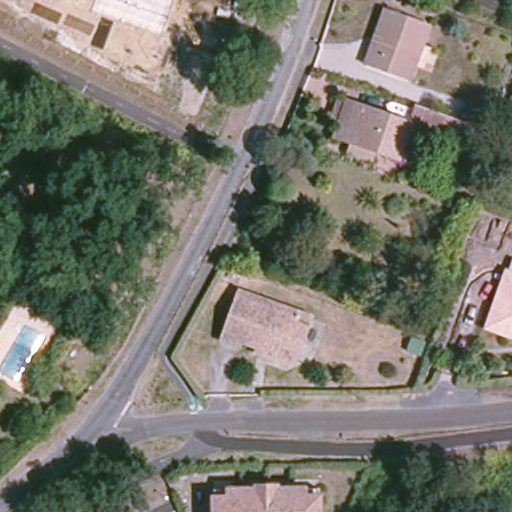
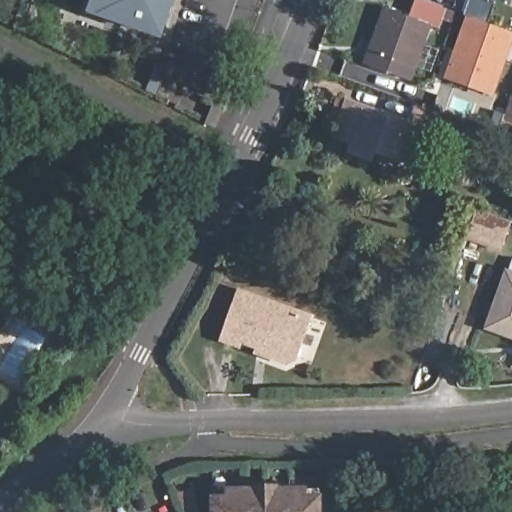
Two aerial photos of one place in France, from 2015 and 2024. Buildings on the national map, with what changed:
new [(162,37),(88,12),(92,0),(176,0),(162,37)]
new [(470,0),(479,0),(496,6),(490,24),(512,32),(512,45),(493,97),(442,79),(470,0)]
unchanged [(373,69),(385,37),(377,34),(385,9),(431,26),(411,82),(373,69)]
unchanged [(463,141),(447,136),(446,140),(411,127),(401,159),(336,137),(347,102),(412,125),(418,106),(469,124),(463,141)]
unchanged [(461,119),(466,105),(502,117),(497,132),(461,119)]
new [(480,211),(512,222),(512,223),(502,251),(470,239),(480,211)]
unchanged [(487,328),(507,272),(512,274),(512,337),(487,328)]
unchanged [(264,352),(241,342),(239,347),(222,341),(240,292),(311,317),(296,360),(286,365),(267,357),(264,352)]
unchanged [(209,512),(208,492),(226,490),(255,488),(255,485),(280,483),(281,487),(307,485),(321,484),(321,494),(323,493),(324,512),(209,512)]

